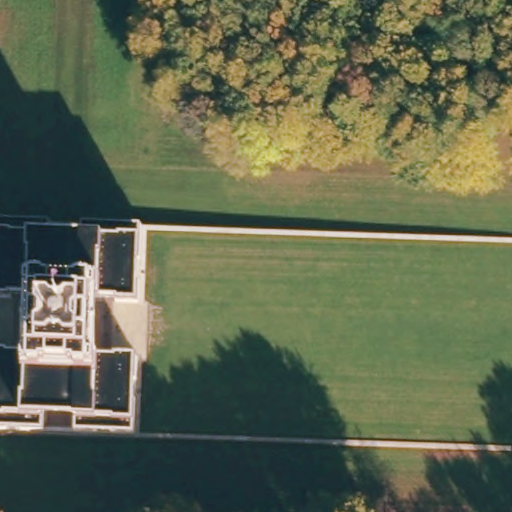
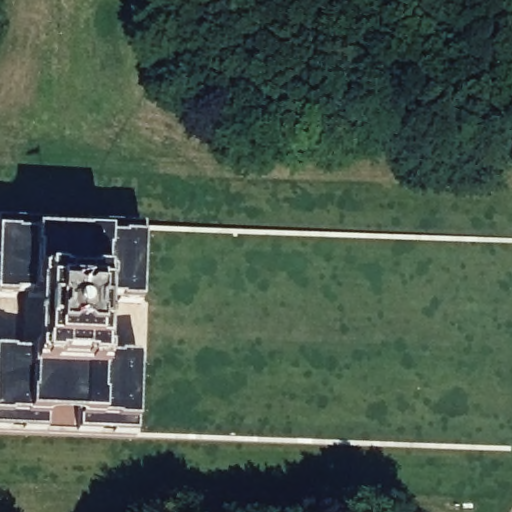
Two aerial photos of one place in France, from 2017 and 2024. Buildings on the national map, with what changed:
unchanged [(144,373),(141,437),(0,433),(0,218),(145,221),(145,229),(147,303),(144,373)]

